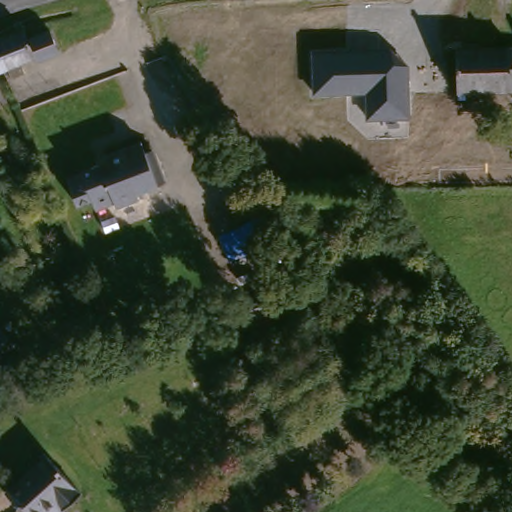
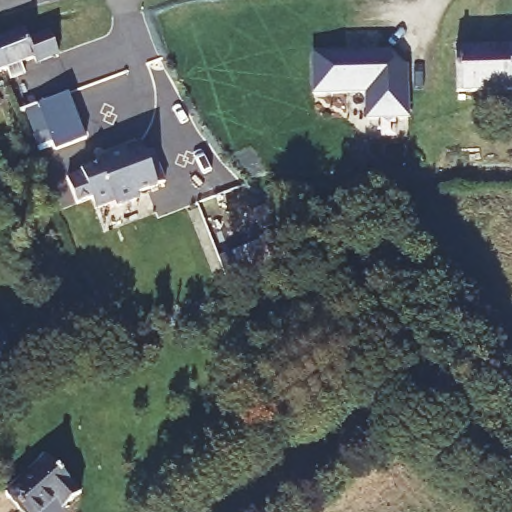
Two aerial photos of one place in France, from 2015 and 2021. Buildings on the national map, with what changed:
unchanged [(19,35),(22,44),(44,35),(53,55),(31,64),(29,60),(13,66),(19,78),(6,84),(0,73),(0,42),(19,35)]
unchanged [(365,120),(366,94),(311,95),(311,50),(388,49),(409,67),(409,119),(365,120)]
unchanged [(505,96),(452,97),(452,52),(504,51),(504,57),(512,57),(512,89),(506,89),(505,96)]
new [(23,111),(69,94),(86,140),(39,157),(23,111)]
unchanged [(77,177),(77,176),(102,166),(100,161),(137,147),(141,158),(148,156),(159,188),(132,198),(134,203),(111,212),(109,206),(90,213),(86,203),(71,208),(62,183),(77,177)]
unchanged [(254,293),(263,311),(230,327),(222,309),(254,293)]
unchanged [(0,341),(0,335),(3,340),(0,341)]
unchanged [(43,458),(78,495),(62,512),(15,512),(2,498),(43,458)]

